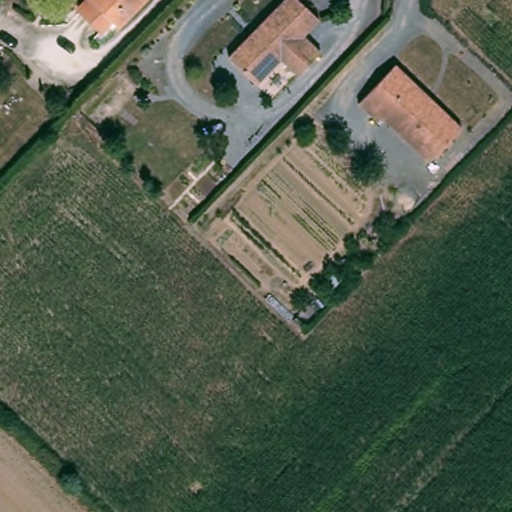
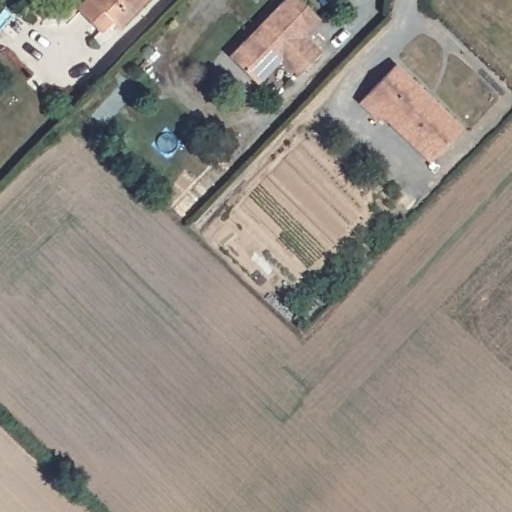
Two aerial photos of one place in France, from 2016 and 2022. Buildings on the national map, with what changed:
unchanged [(106,22),(95,34),(74,12),(85,1),(84,0),(141,0),(113,29),(106,22)]
unchanged [(303,85),(275,57),(251,83),(224,57),(278,0),(299,0),(315,16),(298,35),(325,61),(303,85)]
unchanged [(393,68),(460,132),(426,166),(380,121),(375,125),(356,106),(393,68)]

